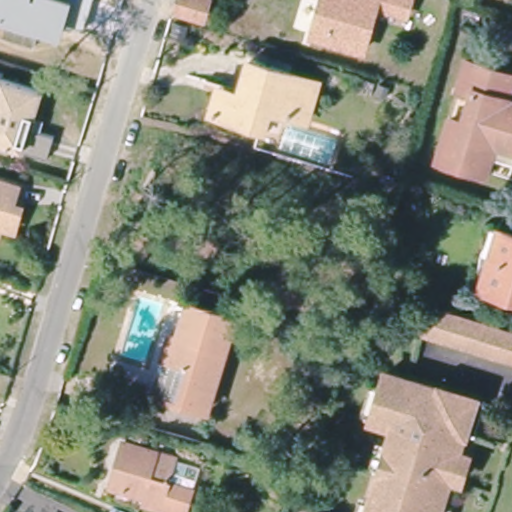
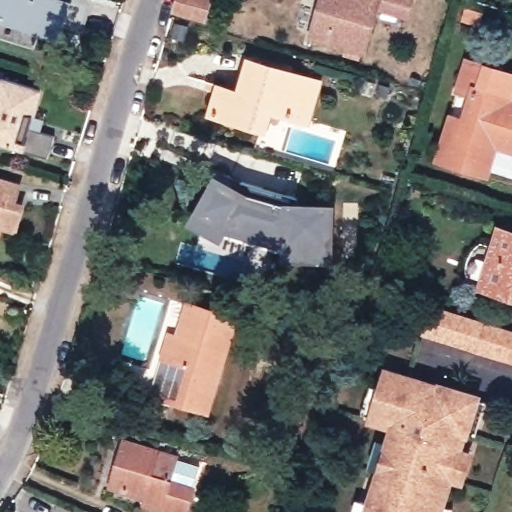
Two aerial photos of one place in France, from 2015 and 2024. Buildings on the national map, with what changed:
unchanged [(66,23),(60,42),(34,34),(31,45),(0,34),(0,0),(89,0),(81,26),(66,23)]
unchanged [(180,0),(201,0),(206,1),(201,20),(177,13),(180,0)]
unchanged [(374,13),(362,52),(311,38),(322,0),(411,0),(405,21),(374,13)]
unchanged [(311,83),(300,121),(269,112),(262,131),(206,114),(212,94),(214,86),(234,91),(242,64),(311,83)]
unchanged [(53,135),(46,156),(0,142),(0,70),(4,71),(2,76),(40,88),(27,127),(53,135)]
unchanged [(492,155),(483,183),(435,167),(447,128),(464,134),(470,108),(452,101),(462,73),(511,89),(505,107),(512,109),(512,161),(492,155)]
new [(333,265),(282,261),(282,247),(227,233),(222,242),(188,228),(210,172),(247,190),(283,202),(335,204),(333,265)]
unchanged [(9,203),(18,206),(11,227),(0,223),(0,177),(16,182),(9,203)]
unchanged [(512,232),(512,296),(484,287),(502,229),(512,232)]
unchanged [(238,315),(209,408),(152,390),(163,356),(170,330),(180,333),(190,301),(238,315)]
unchanged [(512,336),(512,359),(510,364),(411,334),(419,308),(512,336)]
unchanged [(362,497),(373,500),(382,470),(370,467),(380,437),(391,440),(397,422),(374,415),(365,412),(374,382),(383,384),(388,369),(473,394),(471,400),(484,404),(476,432),(464,428),(460,441),(471,445),(461,477),(450,473),(442,500),(453,503),(450,512),(358,512),(362,497)]
unchanged [(190,498),(193,499),(189,512),(163,512),(142,505),(145,495),(108,482),(122,440),(175,457),(172,465),(197,472),(190,498)]

